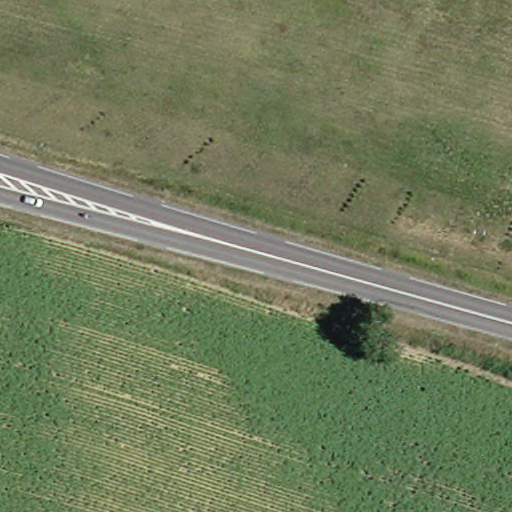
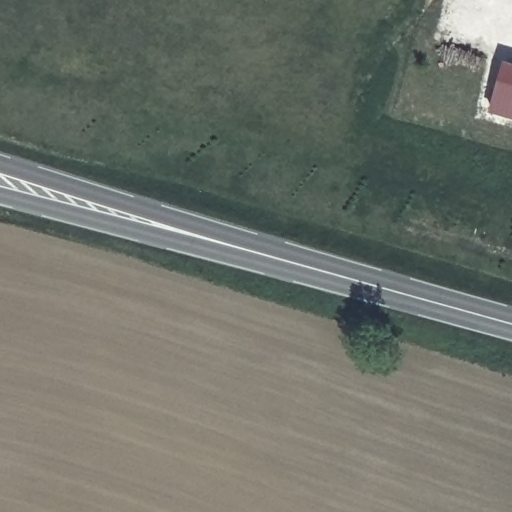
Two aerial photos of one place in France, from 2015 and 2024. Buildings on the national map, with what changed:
new [(492,110),(506,58),(512,60),(512,116),(492,110)]

